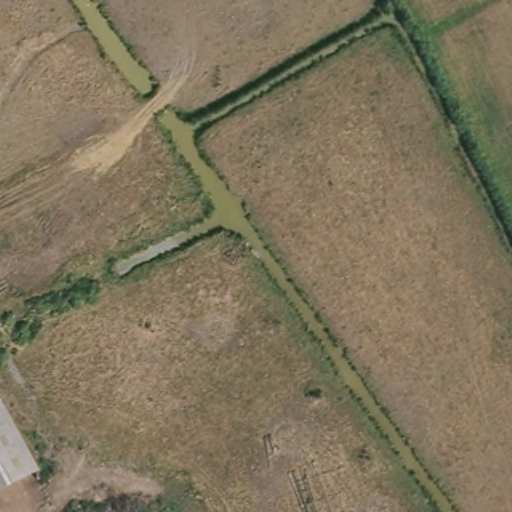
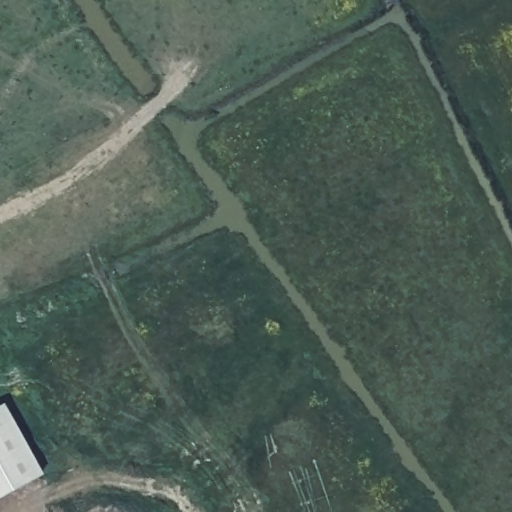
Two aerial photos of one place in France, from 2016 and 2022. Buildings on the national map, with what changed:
unchanged [(42,480),(0,503),(0,409),(2,408),(42,480)]

